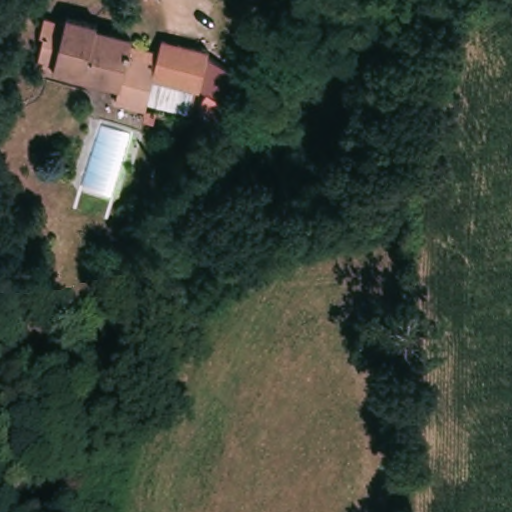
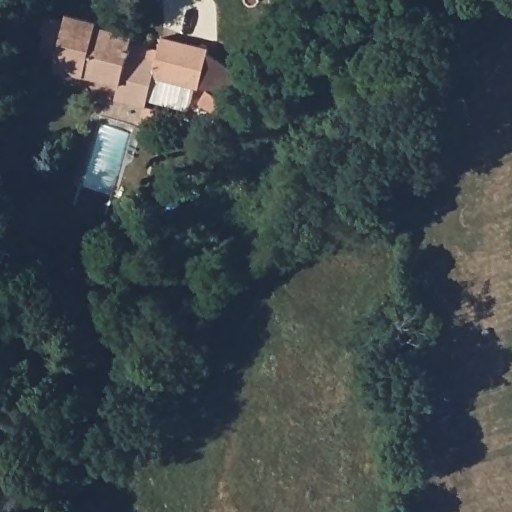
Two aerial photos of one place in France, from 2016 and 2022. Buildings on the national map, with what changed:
unchanged [(214,56),(205,88),(199,87),(159,77),(153,101),(152,104),(151,108),(147,107),(120,100),(124,85),(41,61),(50,32),(46,31),(53,14),(70,19),(74,8),(106,17),(104,26),(139,37),(136,53),(162,61),(169,38),(216,49),(214,56)]
unchanged [(205,88),(214,56),(233,59),(229,64),(248,76),(227,110),(202,105),(205,88)]
unchanged [(199,87),(189,111),(153,101),(159,77),(199,87)]

